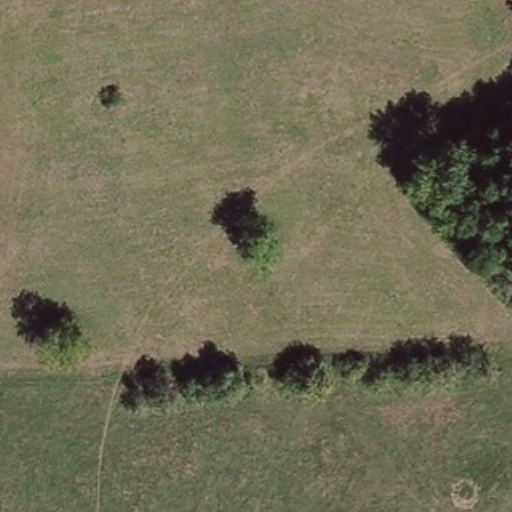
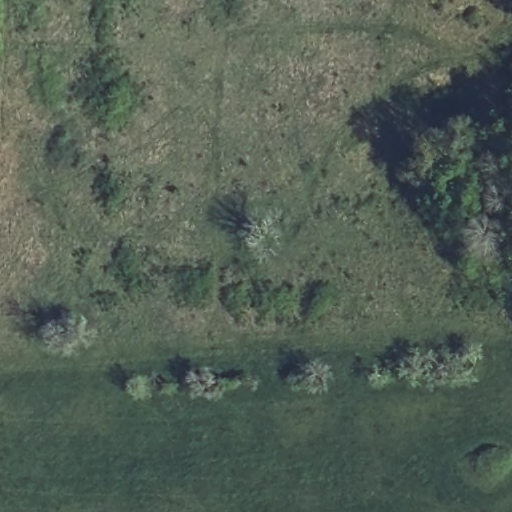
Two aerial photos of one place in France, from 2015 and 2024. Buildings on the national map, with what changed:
[]

